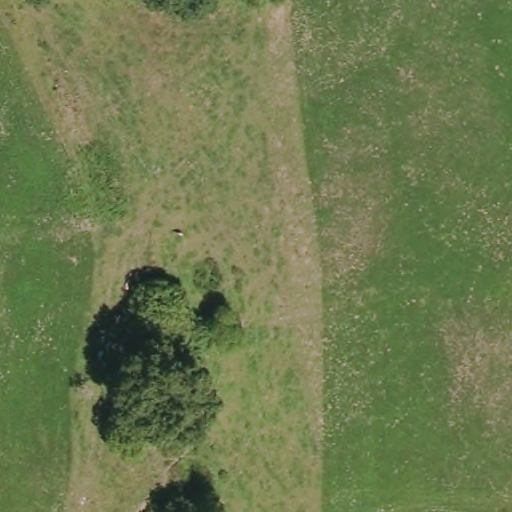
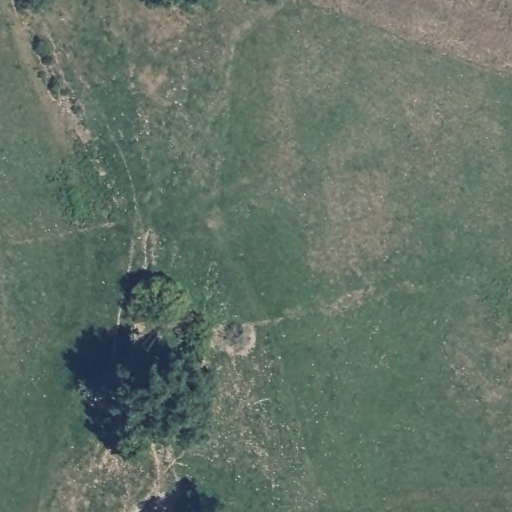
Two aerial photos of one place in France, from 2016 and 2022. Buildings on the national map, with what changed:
[]

